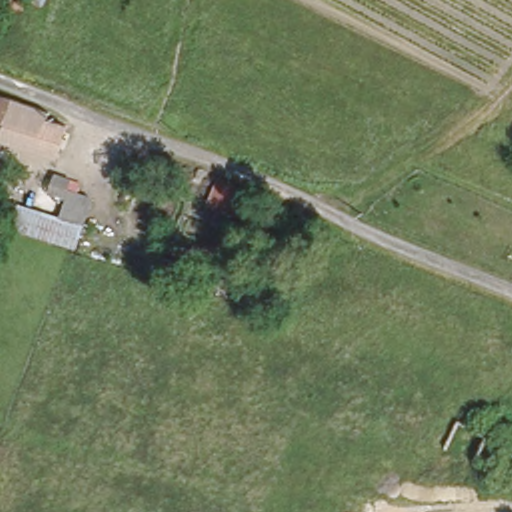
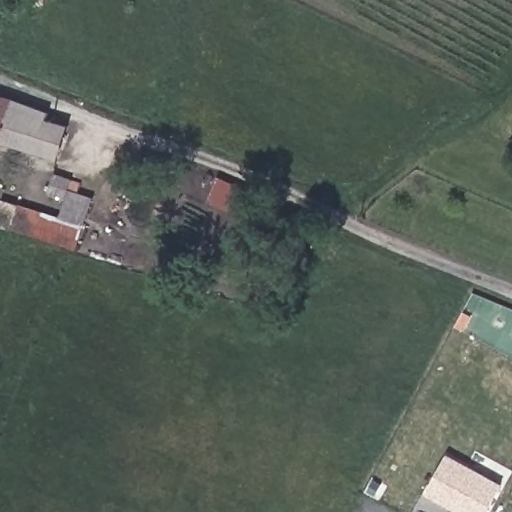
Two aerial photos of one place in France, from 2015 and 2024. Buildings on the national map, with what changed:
unchanged [(0,144),(0,90),(50,110),(48,119),(67,125),(53,160),(0,144)]
unchanged [(0,226),(0,202),(1,200),(58,213),(61,200),(49,197),(58,171),(83,183),(82,186),(81,192),(94,199),(75,251),(0,226)]
unchanged [(245,187),(232,208),(209,204),(219,176),(245,187)]
unchanged [(446,440),(457,419),(475,429),(464,449),(446,440)]
new [(503,484),(488,512),(457,512),(426,495),(448,453),(503,484)]

